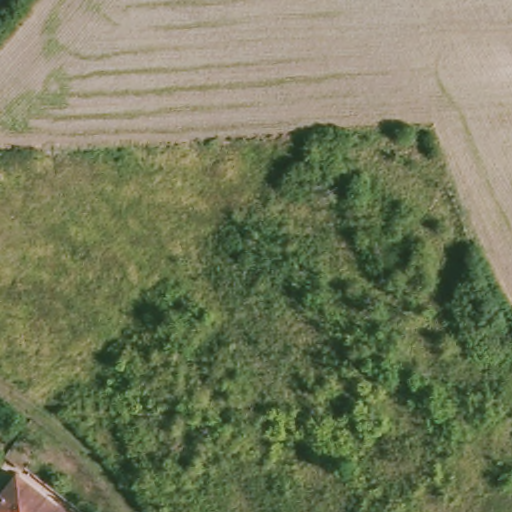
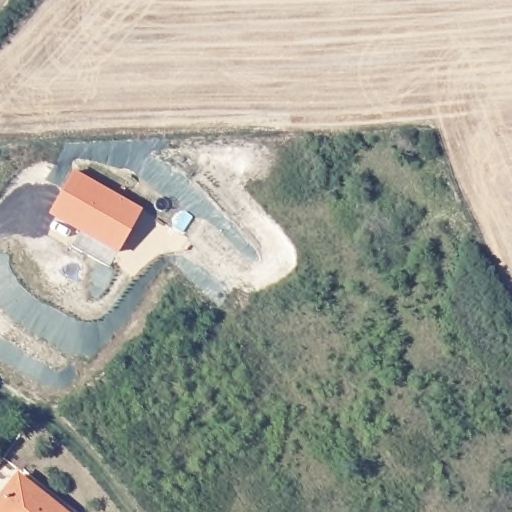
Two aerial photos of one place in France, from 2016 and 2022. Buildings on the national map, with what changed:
new [(48,215),(74,171),(142,209),(118,255),(48,215)]
unchanged [(13,471),(64,512),(0,512),(0,487),(13,471)]

